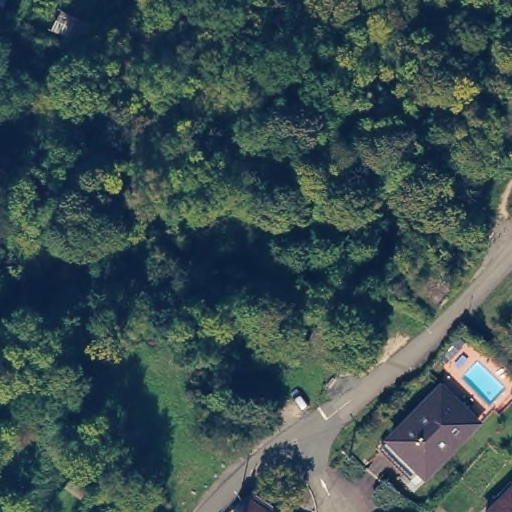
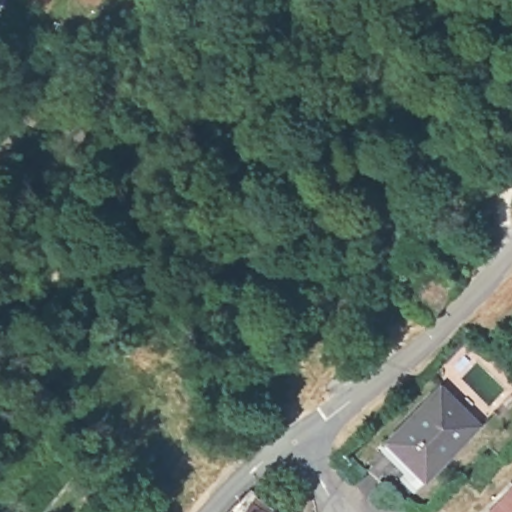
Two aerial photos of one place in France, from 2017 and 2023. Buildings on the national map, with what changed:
unchanged [(390,436),(417,408),(421,412),(445,388),(476,419),(447,449),(443,444),(437,450),(420,467),(390,436)]
unchanged [(512,491),(512,512),(491,512),(512,491)]
unchanged [(268,507),(271,509),(273,507),(283,512),(240,512),(251,495),(268,507)]
unchanged [(286,511),(288,512),(286,512),(286,511)]

